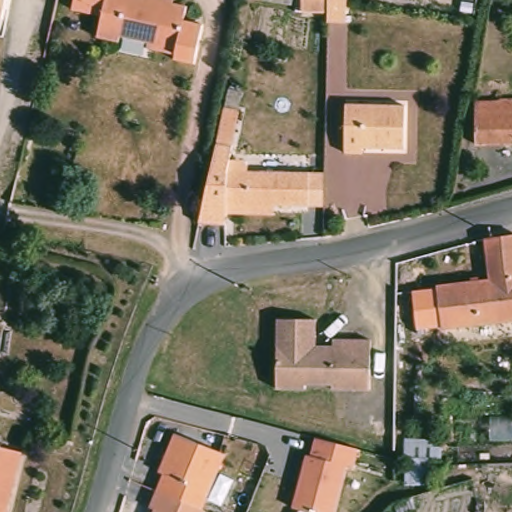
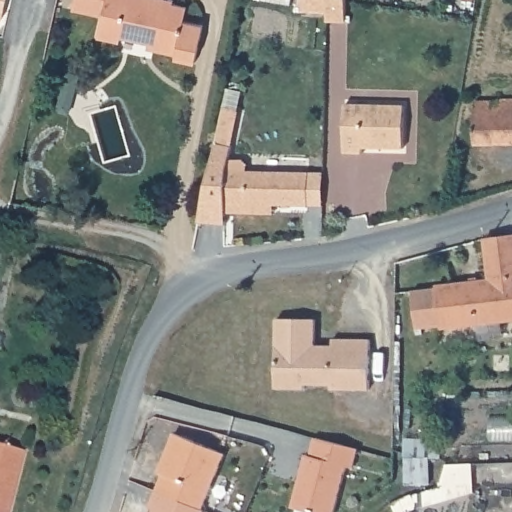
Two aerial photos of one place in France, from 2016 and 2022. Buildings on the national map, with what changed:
unchanged [(6,12),(0,11),(0,0),(8,0),(6,12)]
unchanged [(106,15),(77,8),(78,0),(109,0),(106,15)]
unchanged [(151,39),(124,33),(122,39),(101,34),(106,15),(109,0),(177,0),(177,1),(191,4),(188,17),(209,22),(200,60),(179,56),(180,51),(158,46),(150,44),(151,39)]
unchanged [(350,21),(332,21),(333,12),(307,11),(307,0),(350,0),(350,21)]
unchanged [(498,101),(512,101),(512,145),(475,145),(475,104),(499,105),(498,101)]
unchanged [(403,108),(403,150),(363,150),(363,155),(344,155),(345,107),(403,108)]
unchanged [(230,206),(230,221),(203,220),(220,140),(227,108),(242,112),(236,143),(231,166),(312,168),(311,200),(273,200),(273,207),(230,206)]
unchanged [(486,238),(512,235),(512,320),(442,328),(437,286),(490,280),(486,238)]
unchanged [(314,346),(333,346),(333,340),(370,341),(369,389),(332,389),(332,385),(304,385),(304,389),(275,388),(276,320),(314,320),(314,346)]
unchanged [(167,468),(162,466),(178,428),(228,449),(205,504),(159,485),(167,468)]
unchanged [(344,466),(333,512),(309,512),(291,507),(304,452),(311,453),(315,436),(358,446),(353,468),(344,466)]
unchanged [(6,512),(0,512),(0,446),(21,451),(6,512)]
unchanged [(207,505),(204,512),(153,512),(157,504),(152,502),(159,485),(205,504),(207,505)]

